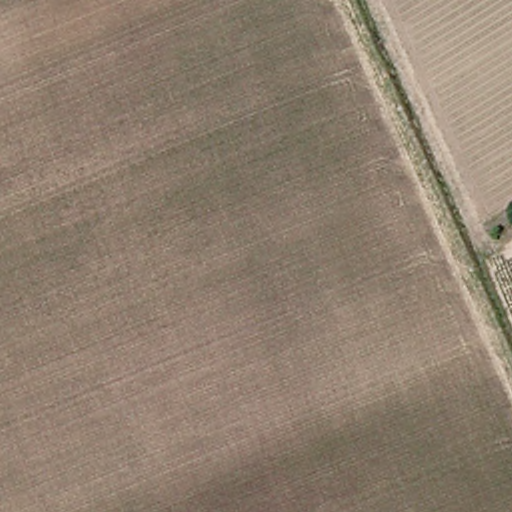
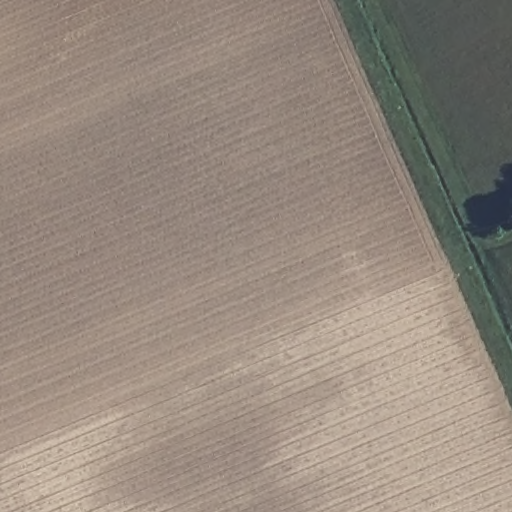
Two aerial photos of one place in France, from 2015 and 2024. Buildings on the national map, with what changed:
[]

